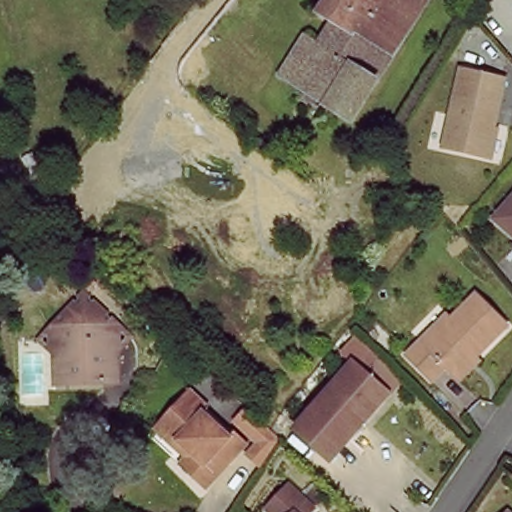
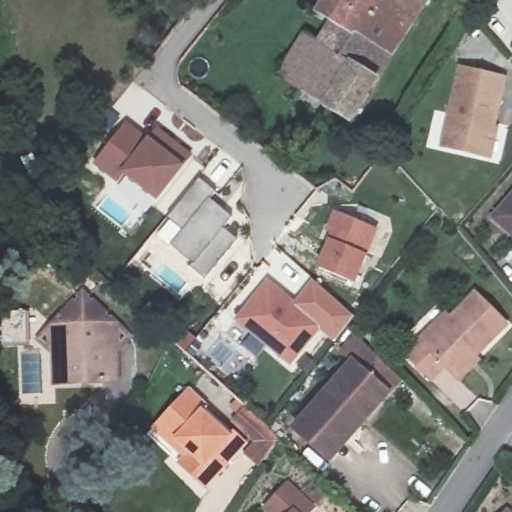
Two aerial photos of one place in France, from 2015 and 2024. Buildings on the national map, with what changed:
unchanged [(334,0),(419,0),(429,6),(377,88),(309,40),(334,0)]
unchanged [(350,129),(326,112),(330,107),(284,79),(306,45),(309,40),(377,88),(350,129)]
unchanged [(465,70),(508,84),(482,161),(440,147),(465,70)]
new [(125,124),(146,139),(152,130),(190,156),(157,201),(123,176),(119,186),(93,165),(125,124)]
unchanged [(512,200),(512,234),(495,220),(512,200)]
new [(181,230),(204,204),(211,210),(216,205),(231,217),(222,228),(236,239),(204,280),(188,267),(193,262),(171,245),(181,230)]
new [(374,235),(350,287),(308,270),(328,215),(374,235)]
new [(268,280),(324,323),(289,368),(233,321),(268,280)]
unchanged [(85,287),(117,317),(132,330),(119,345),(121,376),(59,380),(56,349),(42,335),(55,320),(85,287)]
unchanged [(462,382),(450,372),(447,369),(434,382),(407,356),(422,342),(447,315),(452,320),(477,294),(510,325),(477,359),(480,362),(462,382)]
unchanged [(291,440),(295,434),(349,371),(339,362),(353,343),(384,373),(398,387),(355,437),(327,470),(291,440)]
unchanged [(191,480),(177,467),(184,460),(153,430),(157,425),(188,393),(206,411),(232,435),(244,446),(223,469),(202,490),(191,480)]
unchanged [(255,448),(233,427),(246,413),(270,435),(278,442),(259,471),(245,458),(255,448)]
unchanged [(309,512),(271,512),(268,508),(272,503),(285,490),(309,512)]
unchanged [(505,508),(509,512),(502,512),(505,508)]

